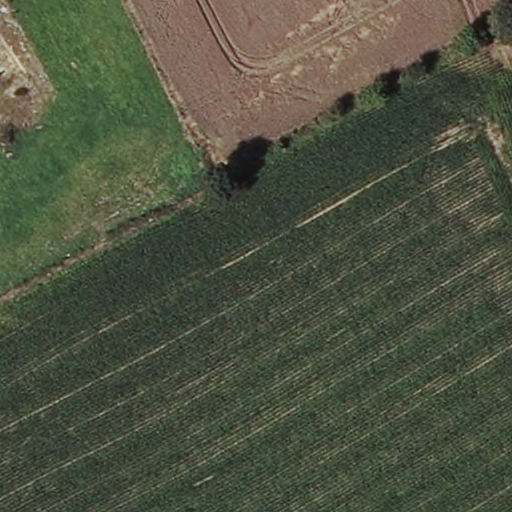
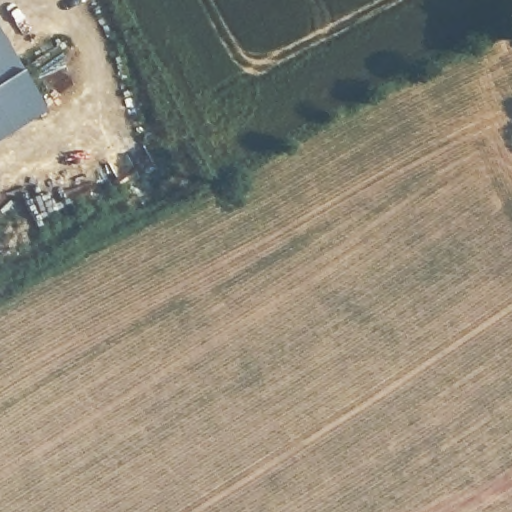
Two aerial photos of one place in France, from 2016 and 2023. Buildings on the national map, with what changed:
new [(0,139),(0,39),(44,111),(0,139)]

